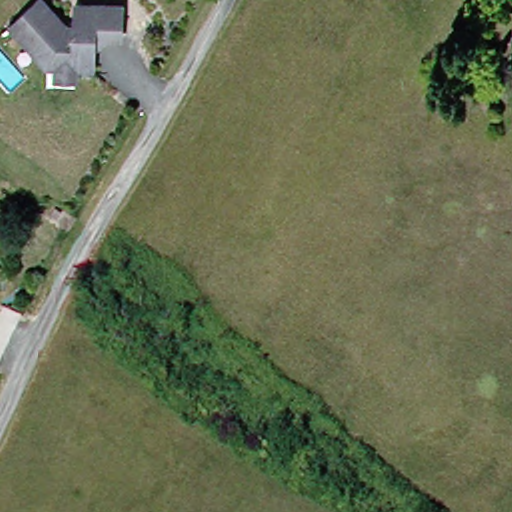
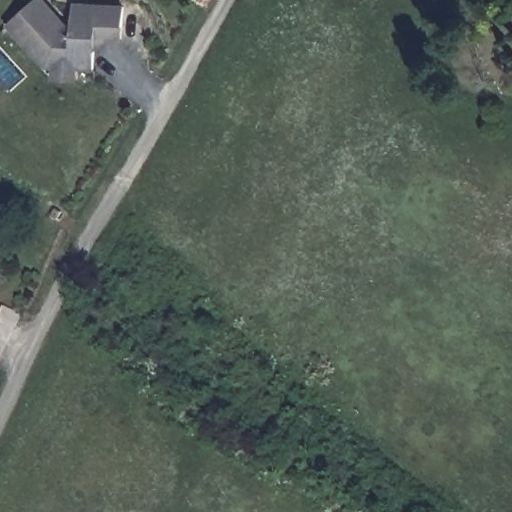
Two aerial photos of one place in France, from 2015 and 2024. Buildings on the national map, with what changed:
unchanged [(58,67),(52,67),(14,26),(42,0),(46,0),(71,26),(79,26),(79,6),(101,6),(127,8),(126,39),(100,38),(98,69),(83,68),(83,80),(58,79),(58,67)]
unchanged [(56,220),(50,216),(55,209),(61,213),(56,220)]

